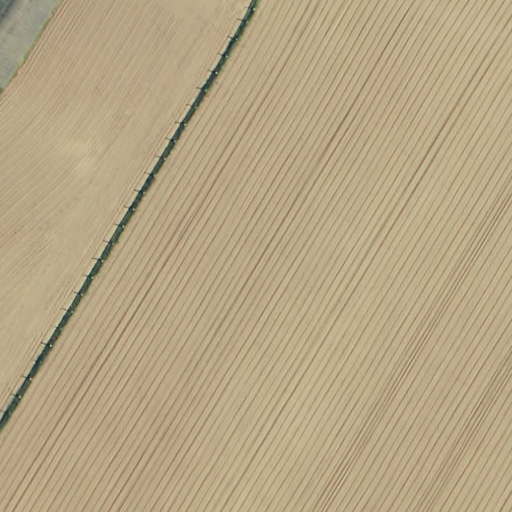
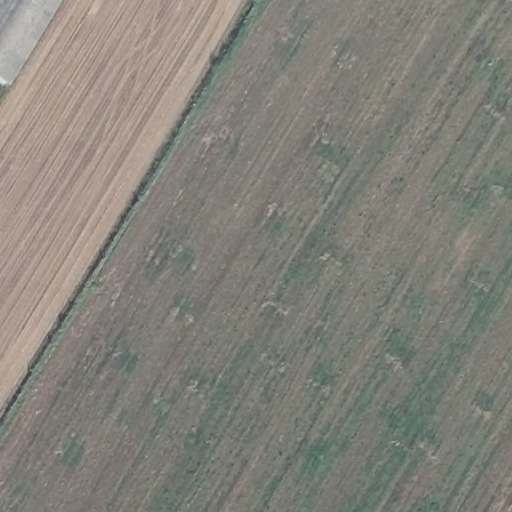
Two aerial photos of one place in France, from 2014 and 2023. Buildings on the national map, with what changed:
unchanged [(0,83),(0,0),(54,0),(3,85),(0,83)]

